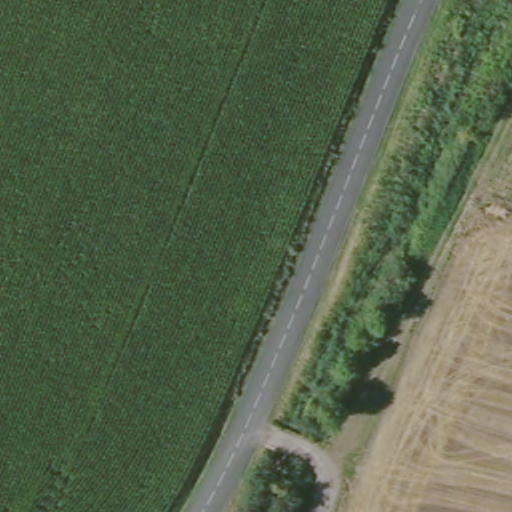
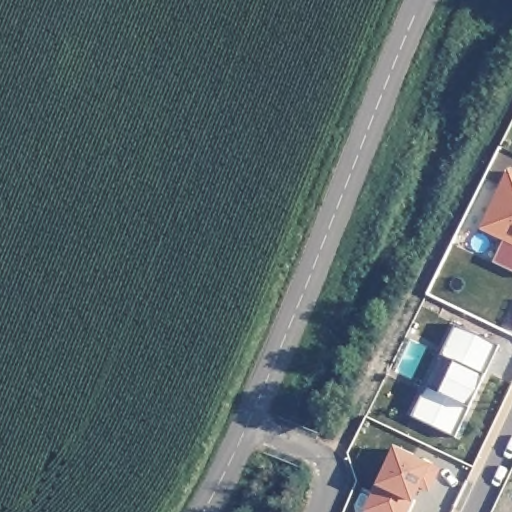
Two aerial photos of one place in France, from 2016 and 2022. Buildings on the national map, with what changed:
new [(512,171),(512,245),(479,229),(508,169),(512,171)]
new [(427,387),(439,393),(454,362),(442,354),(456,325),(499,346),(484,375),(469,408),(456,436),(413,416),(427,387)]
new [(375,486),(394,447),(432,464),(442,469),(431,493),(419,488),(412,503),(408,512),(365,512),(363,511),(375,486)]

